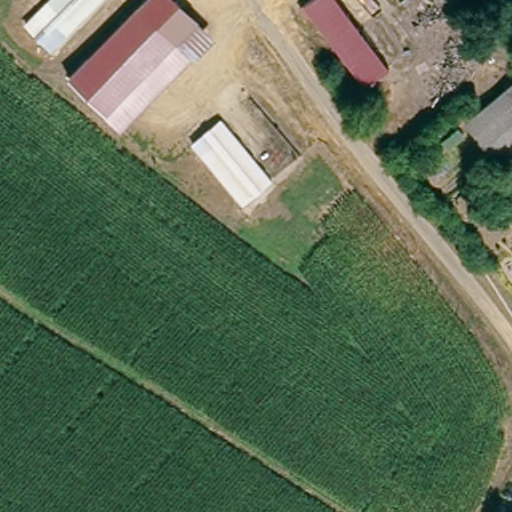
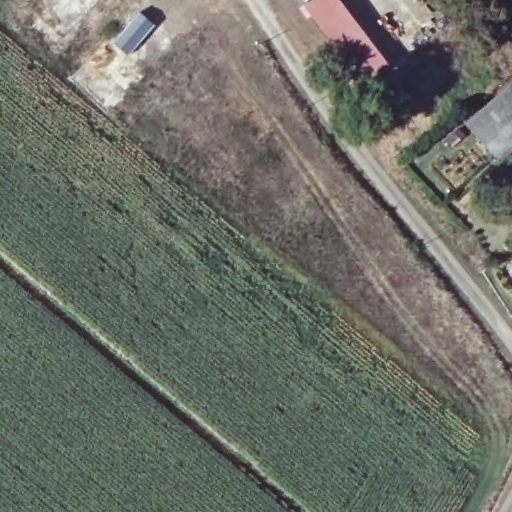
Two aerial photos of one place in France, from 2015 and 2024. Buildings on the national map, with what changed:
demolished [(69,36),(52,54),(26,28),(55,0),(104,0),(69,36)]
demolished [(143,0),(178,0),(220,36),(125,136),(68,80),(143,0)]
unchanged [(390,66),(364,85),(320,21),(306,2),(310,0),(342,0),(350,11),(390,66)]
unchanged [(501,100),(512,92),(512,139),(489,110),(501,100)]
unchanged [(470,125),(489,110),(512,139),(512,146),(496,159),(470,125)]
demolished [(221,120),(275,182),(244,207),(190,146),(221,120)]

